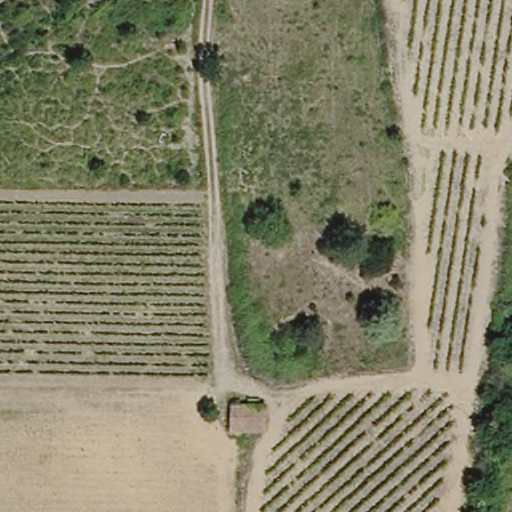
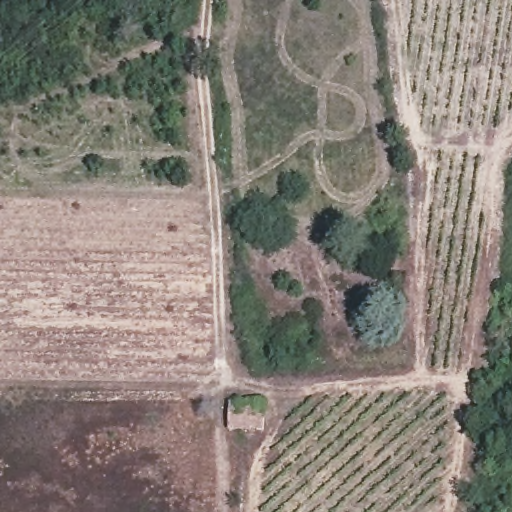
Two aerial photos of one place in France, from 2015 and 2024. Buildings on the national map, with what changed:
unchanged [(504,300),(504,321),(482,321),(484,299),(504,300)]
unchanged [(223,408),(241,407),(258,406),(259,432),(241,432),(223,433),(223,408)]

